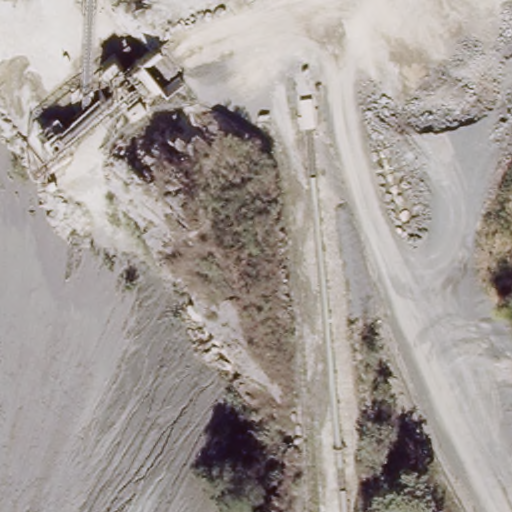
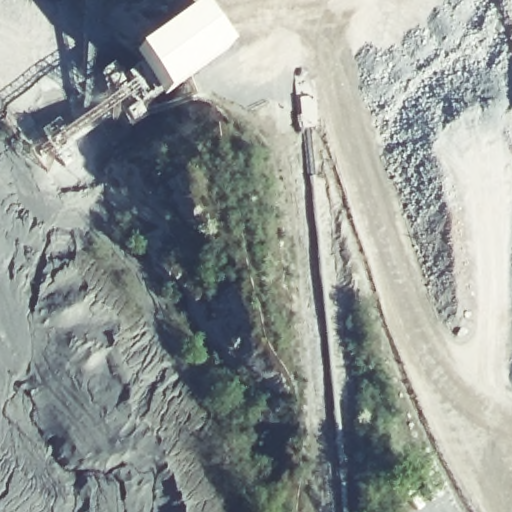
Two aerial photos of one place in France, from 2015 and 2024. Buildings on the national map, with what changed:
new [(198,5),(230,48),(167,100),(130,54),(198,5)]

